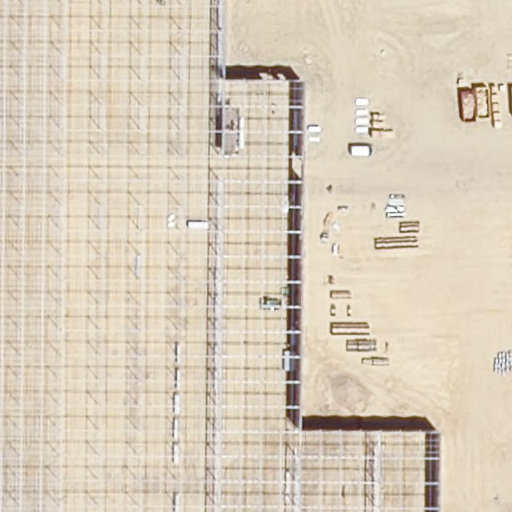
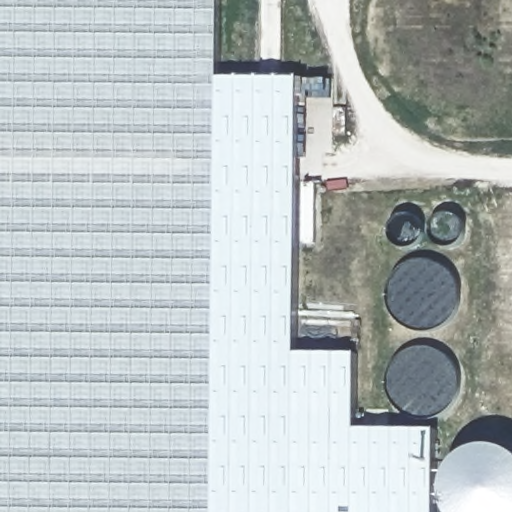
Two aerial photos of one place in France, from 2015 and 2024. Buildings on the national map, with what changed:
unchanged [(218,78),(300,77),(296,352),(295,429),(355,428),(435,428),(435,512),(0,512),(0,0),(220,0),(218,78)]
new [(295,429),(296,352),(355,355),(355,428),(295,429)]

